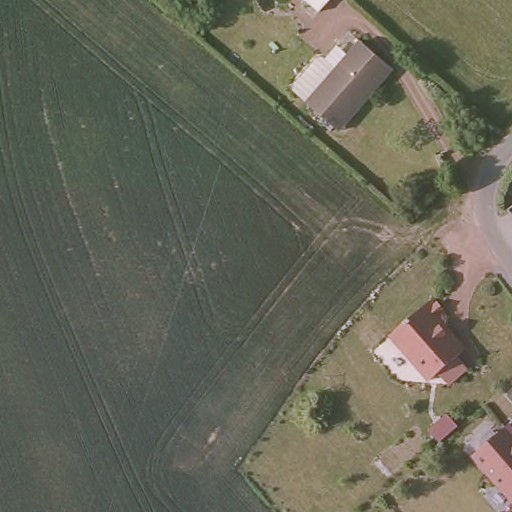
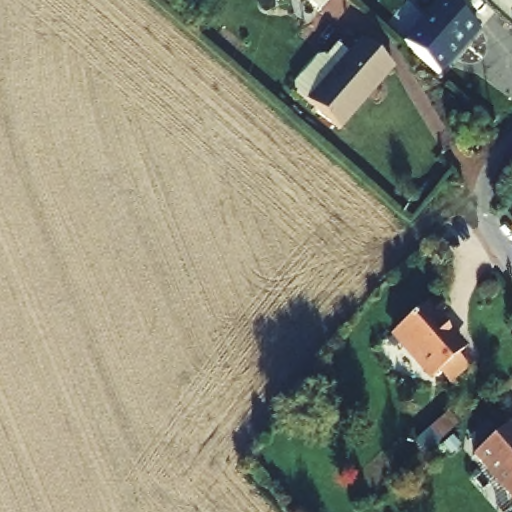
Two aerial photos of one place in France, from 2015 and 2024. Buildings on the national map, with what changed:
unchanged [(311,0),(327,0),(320,8),(311,0)]
new [(443,66),(408,34),(439,0),(457,0),(482,23),(443,66)]
unchanged [(321,55),(330,55),(344,66),(365,42),(395,70),(343,128),(299,88),(297,80),(321,55)]
unchanged [(512,206),(512,218),(506,211),(512,206)]
unchanged [(445,305),(459,322),(450,330),(452,332),(450,335),(452,337),(460,347),(463,344),(475,358),(445,384),(437,375),(437,369),(431,368),(424,360),(406,339),(445,305)]
unchanged [(512,439),(512,496),(484,464),(512,439)]

